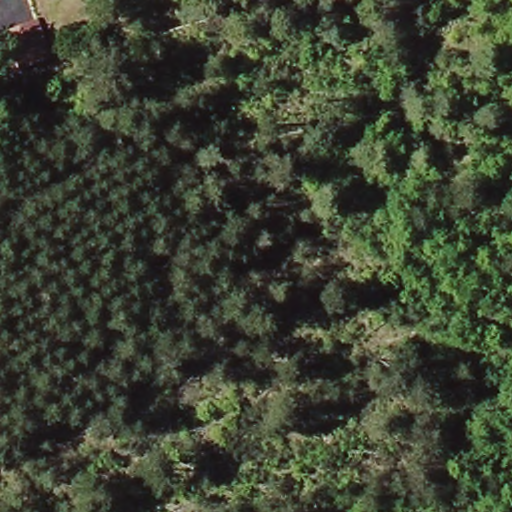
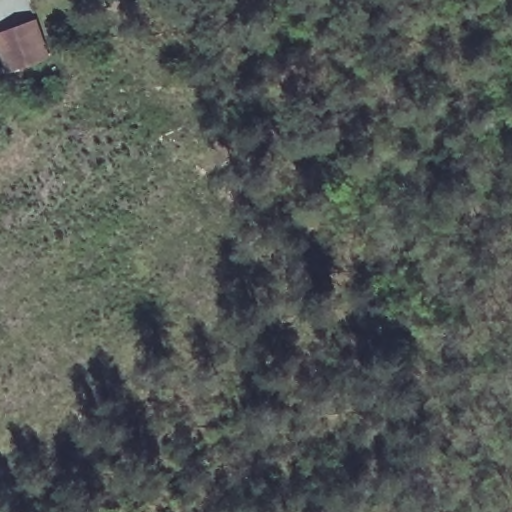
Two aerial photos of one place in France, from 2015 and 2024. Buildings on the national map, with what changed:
new [(8,69),(0,46),(0,39),(33,26),(44,56),(8,69)]

